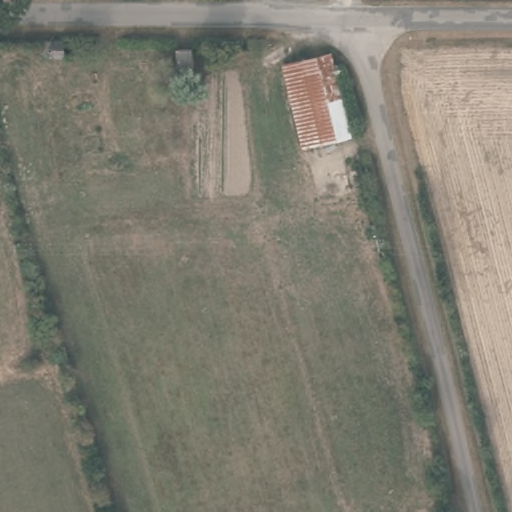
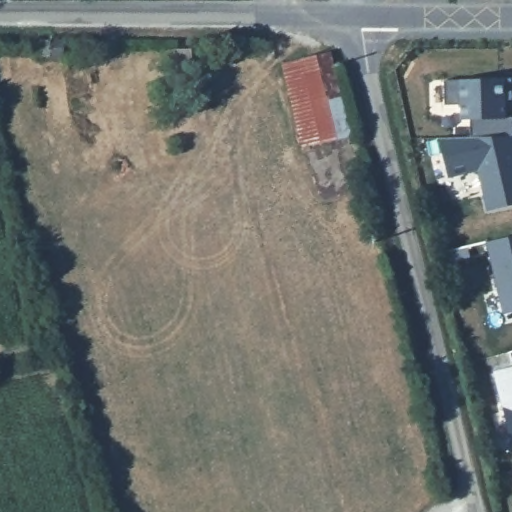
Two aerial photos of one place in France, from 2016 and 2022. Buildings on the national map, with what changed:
demolished [(65,53),(28,52),(29,37),(65,37),(65,53)]
demolished [(187,71),(169,71),(170,47),(187,48),(187,71)]
unchanged [(298,149),(275,63),(325,52),(347,135),(298,149)]
new [(512,79),(512,100),(504,100),(505,117),(512,117),(512,136),(471,137),(471,120),(462,120),(461,105),(445,105),(445,80),(512,79)]
new [(471,137),(512,136),(512,205),(488,211),(478,171),(449,177),(440,138),(471,137)]
new [(512,236),(512,312),(504,314),(487,242),(512,236)]
new [(512,365),(512,435),(494,369),(512,365)]

